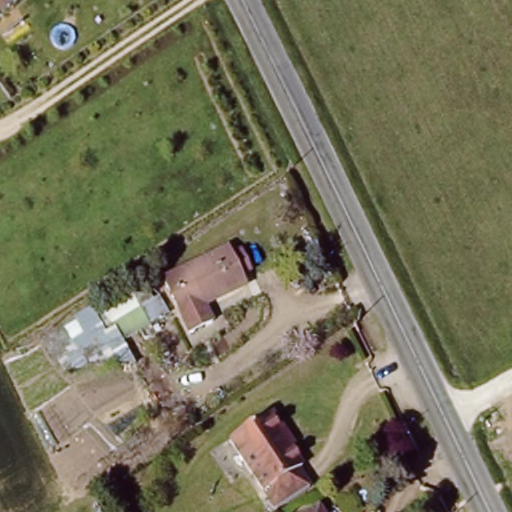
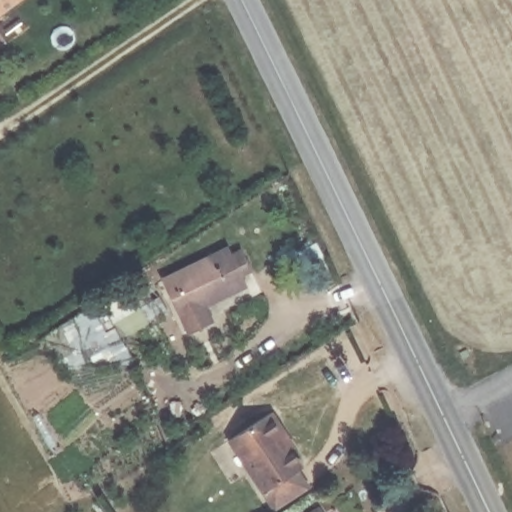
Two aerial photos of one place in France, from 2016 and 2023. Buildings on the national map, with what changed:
unchanged [(23,0),(0,17),(0,0),(23,0)]
unchanged [(183,334),(163,294),(156,279),(217,246),(221,254),(231,249),(241,268),(231,274),(235,282),(203,297),(214,319),(183,334)]
unchanged [(167,313),(124,338),(137,361),(96,362),(63,372),(42,333),(93,303),(144,277),(153,296),(159,294),(167,313)]
unchanged [(281,510),(234,441),(274,414),(284,430),(281,432),(304,466),(300,468),(314,488),(281,510)]
unchanged [(323,512),(299,512),(316,501),(323,512)]

